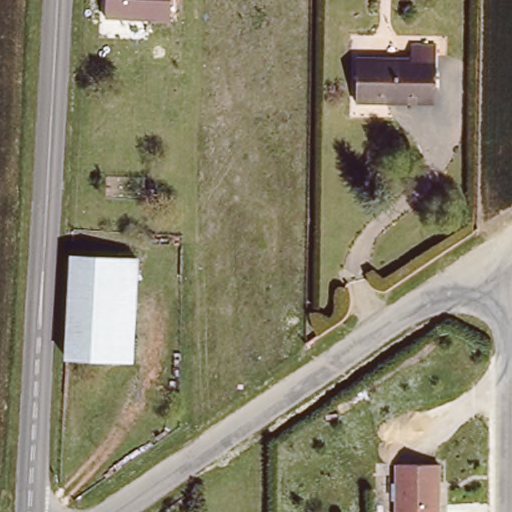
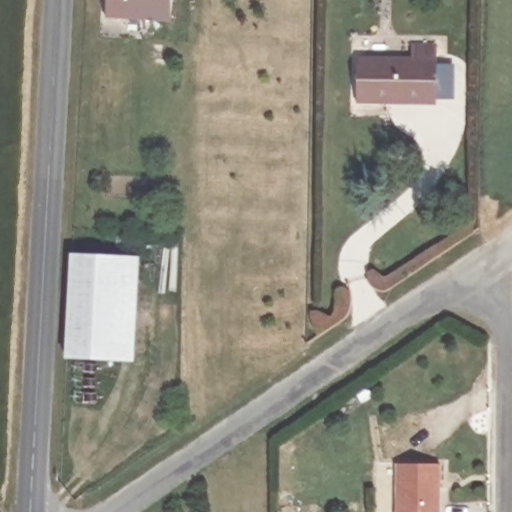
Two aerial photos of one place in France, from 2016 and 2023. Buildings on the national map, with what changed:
unchanged [(104,0),(169,0),(168,21),(103,18),(104,0)]
unchanged [(354,105),(353,49),(437,47),(437,90),(437,107),(418,106),(388,105),(354,105)]
unchanged [(70,254),(138,257),(133,359),(65,356),(70,254)]
unchanged [(444,457),(444,512),(401,512),(401,457),(444,457)]

